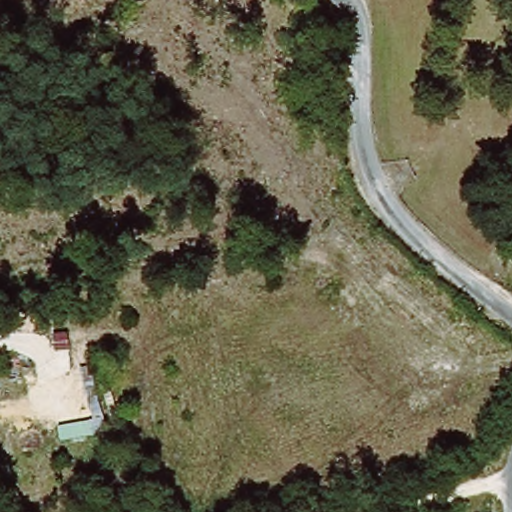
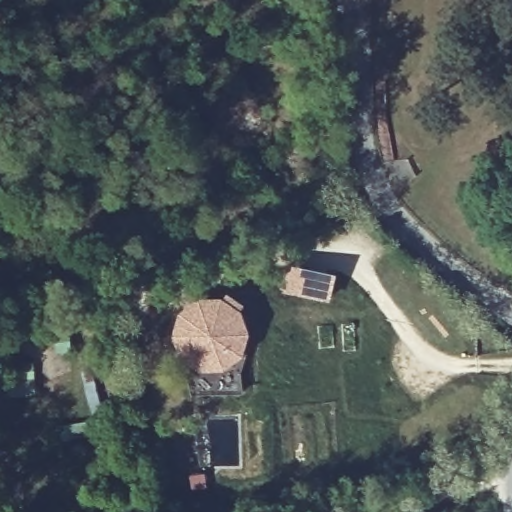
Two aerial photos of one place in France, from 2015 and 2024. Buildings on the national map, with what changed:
new [(280,292),(285,267),(318,273),(317,277),(323,278),(324,275),(334,277),(329,302),(280,292)]
new [(246,338),(240,360),(224,373),(202,373),(184,361),(177,341),(183,320),(200,307),(221,306),(240,319),(246,338)]

